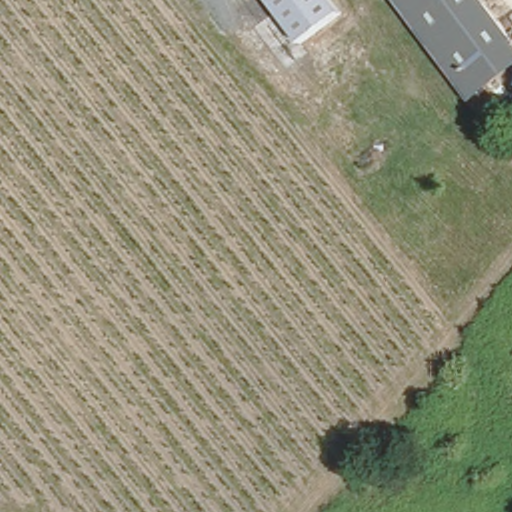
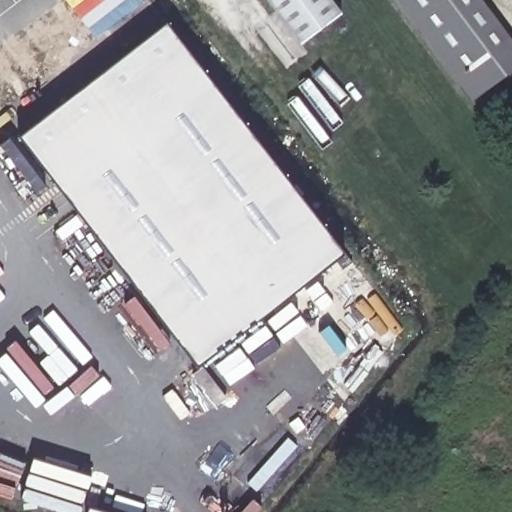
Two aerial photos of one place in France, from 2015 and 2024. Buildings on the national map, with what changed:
unchanged [(268,0),(331,0),(340,12),(300,42),(268,0)]
unchanged [(450,75),(392,0),(478,0),(504,34),(450,75)]
new [(172,19),(350,251),(201,366),(23,131),(172,19)]
unchanged [(450,75),(504,34),(512,44),(512,60),(465,96),(450,75)]

